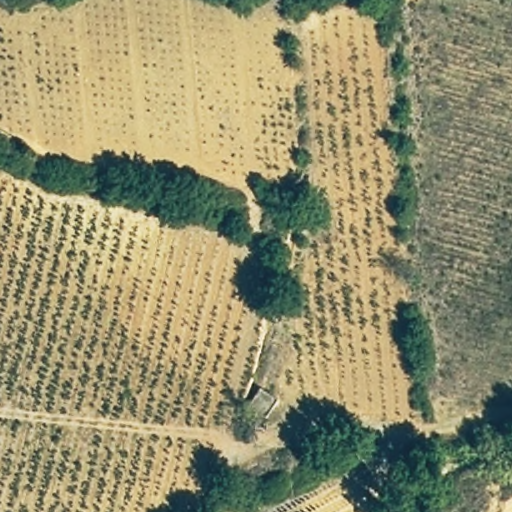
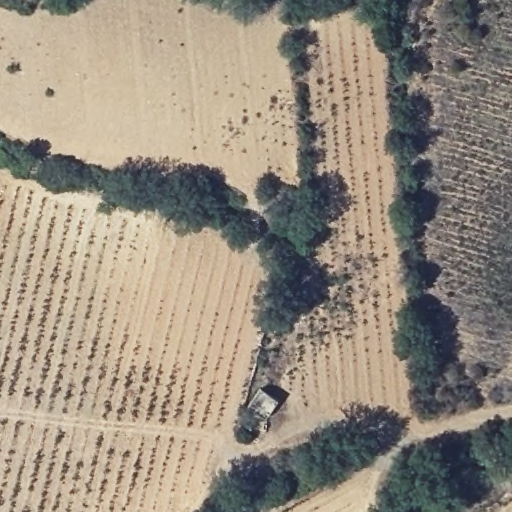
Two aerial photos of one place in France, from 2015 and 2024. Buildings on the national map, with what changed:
unchanged [(275,399),(265,409),(250,397),(262,386),(275,399)]

